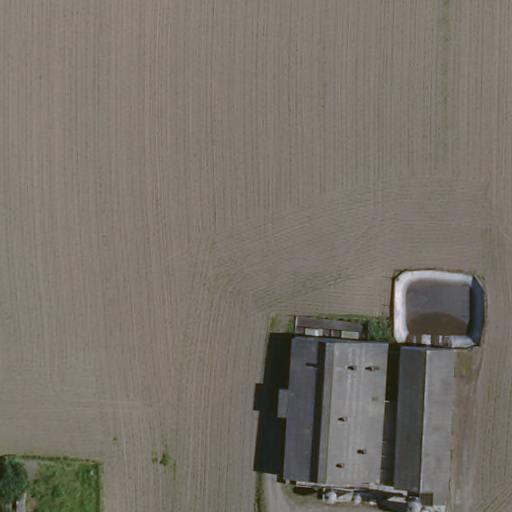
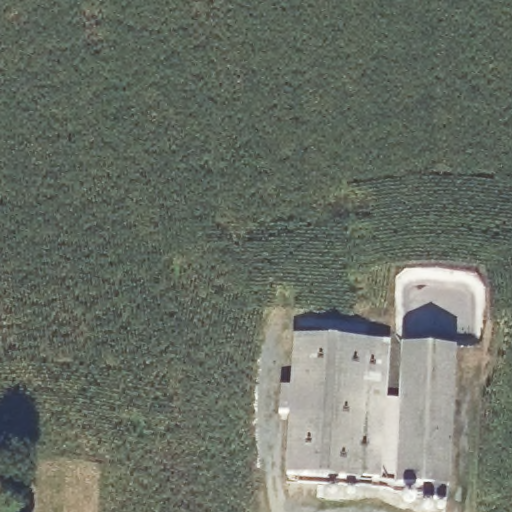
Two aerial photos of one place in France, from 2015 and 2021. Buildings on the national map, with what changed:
unchanged [(391,339),(383,480),(290,475),(297,334),(391,339)]
unchanged [(457,341),(455,485),(450,484),(450,501),(427,500),(427,483),(400,481),(403,340),(457,341)]

